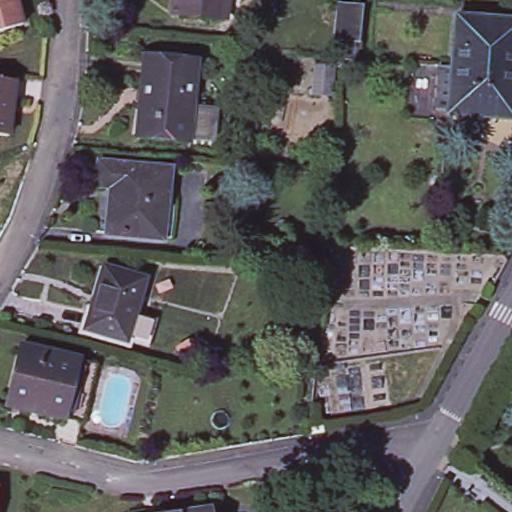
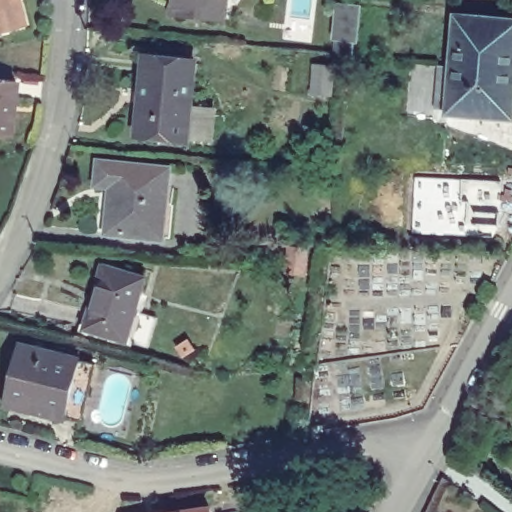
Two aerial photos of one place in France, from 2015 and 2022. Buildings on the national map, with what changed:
unchanged [(0,28),(0,0),(20,0),(25,21),(0,28)]
unchanged [(174,15),(175,0),(225,0),(224,18),(174,15)]
unchanged [(339,4),(361,6),(358,41),(334,39),(339,4)]
unchanged [(512,14),(512,113),(452,109),(460,11),(512,14)]
unchanged [(197,51),(195,100),(216,106),(214,140),(193,135),(192,145),(132,138),(140,48),(197,51)]
unchanged [(332,65),(330,96),(314,95),(316,64),(332,65)]
unchanged [(10,131),(0,130),(0,75),(15,76),(10,131)]
unchanged [(169,164),(162,234),(106,228),(111,182),(95,181),(98,156),(169,164)]
new [(502,183),(499,239),(412,236),(414,177),(502,183)]
unchanged [(103,266),(144,278),(125,342),(85,330),(103,266)]
unchanged [(90,363),(76,421),(1,404),(15,347),(90,363)]
unchanged [(312,424),(324,422),(325,431),(314,433),(312,424)]
unchanged [(210,512),(147,512),(209,503),(210,512)]

